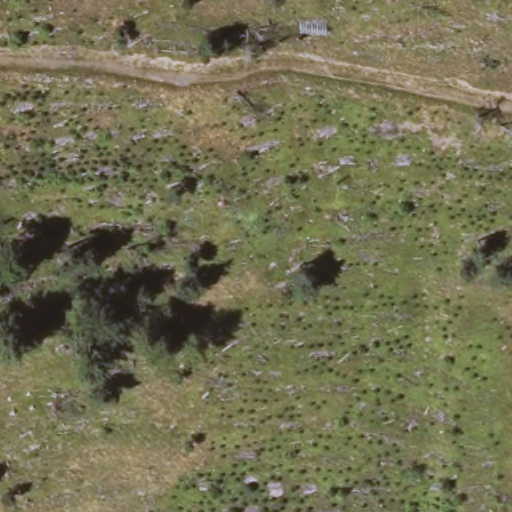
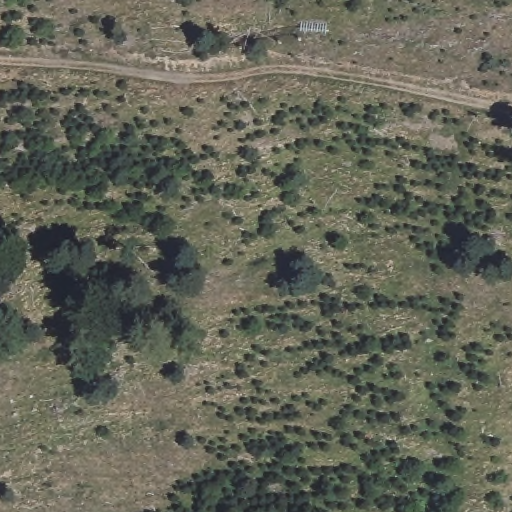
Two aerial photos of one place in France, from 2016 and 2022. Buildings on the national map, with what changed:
[]

